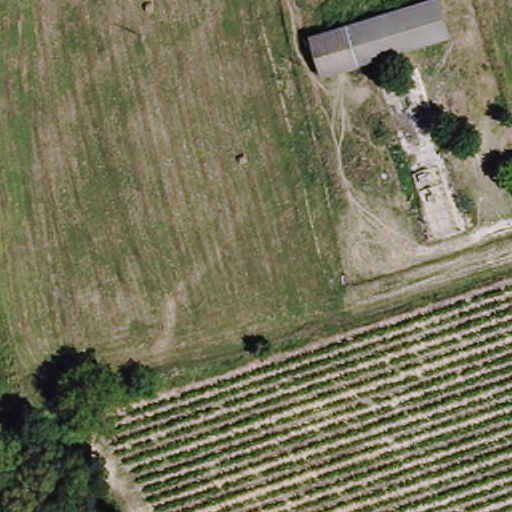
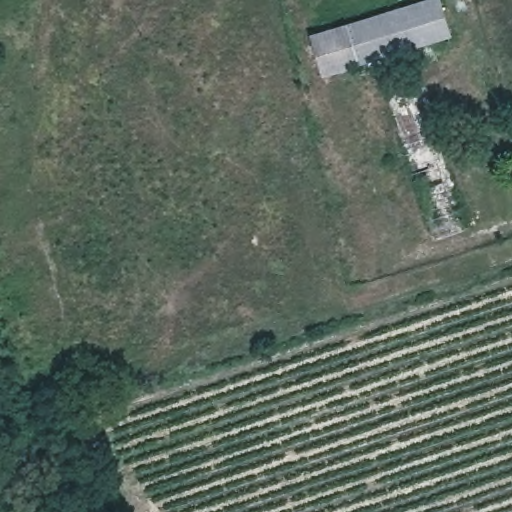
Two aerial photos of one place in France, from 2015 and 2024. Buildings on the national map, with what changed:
unchanged [(322,77),(307,33),(418,0),(435,0),(447,37),(322,77)]

